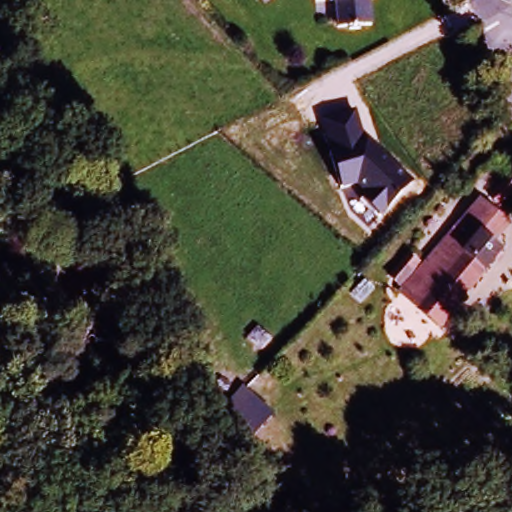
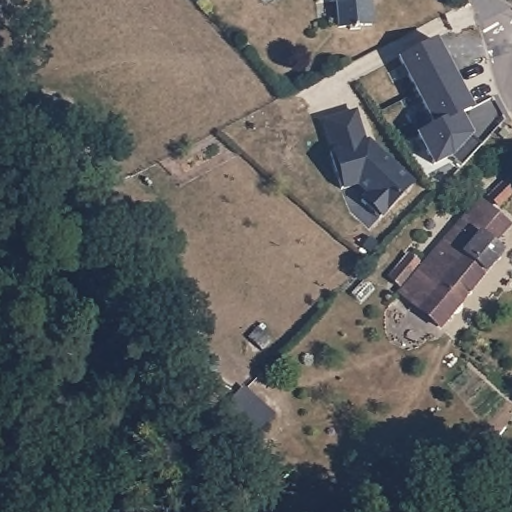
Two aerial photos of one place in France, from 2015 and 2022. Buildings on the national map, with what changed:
unchanged [(331,0),(379,0),(379,23),(337,31),(333,8),(331,0)]
new [(433,38),(444,59),(448,57),(455,71),(416,92),(397,57),(433,38)]
new [(455,71),(463,86),(459,88),(470,108),(458,114),(434,126),(433,126),(416,92),(455,71)]
unchanged [(367,144),(414,180),(383,218),(361,200),(354,185),(343,188),(324,121),(356,111),(367,144)]
new [(433,126),(434,126),(458,114),(470,135),(480,145),(460,166),(449,156),(433,164),(417,134),(433,126)]
unchanged [(486,200),(507,179),(512,185),(512,194),(496,210),(486,200)]
unchanged [(477,206),(506,230),(492,247),(501,255),(459,304),(458,303),(437,329),(398,296),(477,206)]

